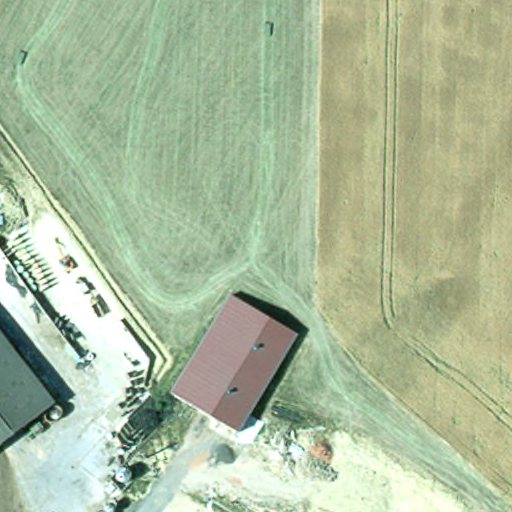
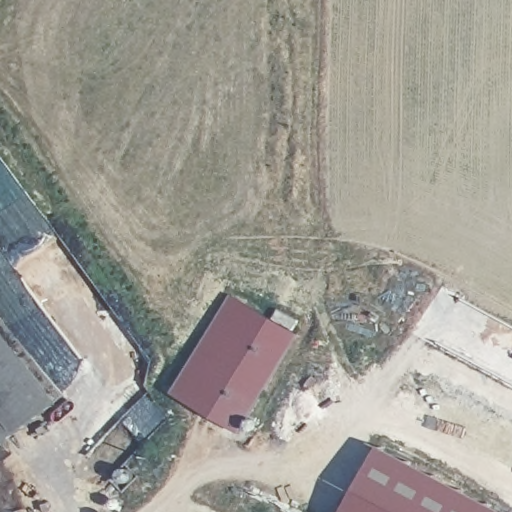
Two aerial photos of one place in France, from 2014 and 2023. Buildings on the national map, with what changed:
unchanged [(233,295),(300,335),(240,431),(173,393),(233,295)]
unchanged [(0,440),(0,336),(50,400),(0,440)]
new [(504,512),(344,512),(378,446),(504,512)]

